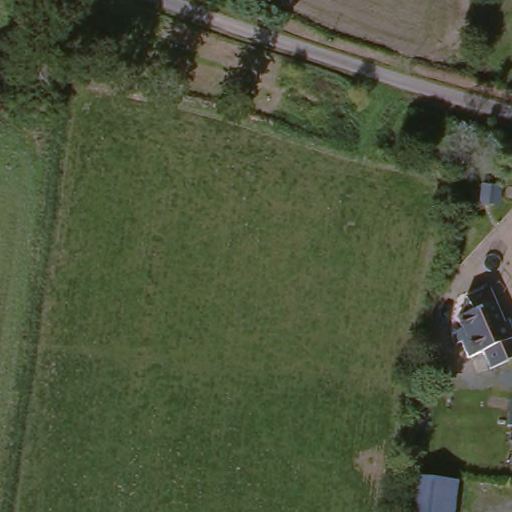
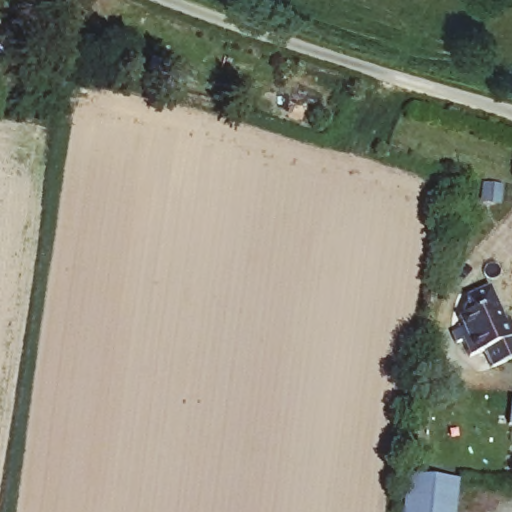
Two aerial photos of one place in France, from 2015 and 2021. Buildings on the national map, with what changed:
unchanged [(512,338),(512,356),(488,366),(479,350),(466,356),(457,340),(460,335),(453,316),(464,310),(459,295),(483,285),(499,319),(503,317),(512,338)]
unchanged [(448,512),(398,512),(401,469),(453,479),(448,512)]

